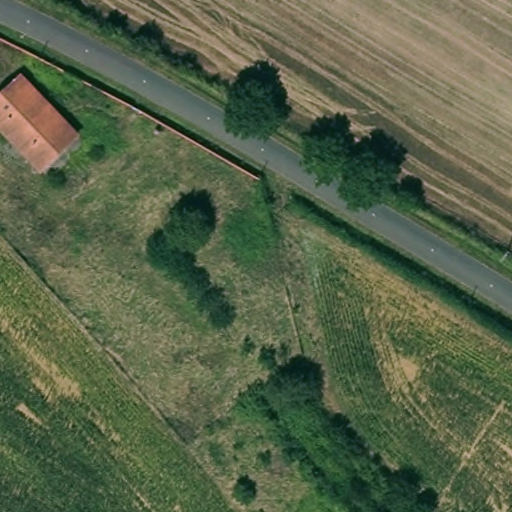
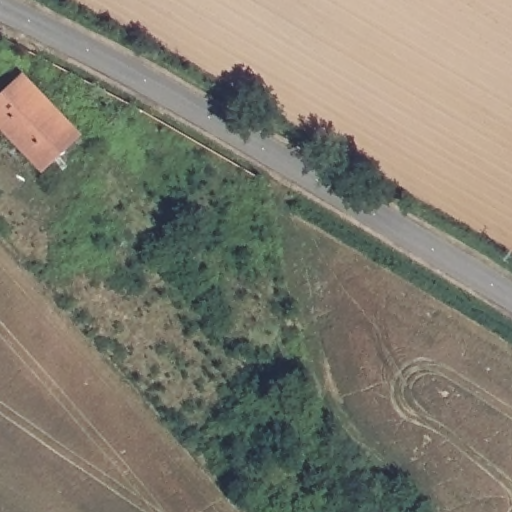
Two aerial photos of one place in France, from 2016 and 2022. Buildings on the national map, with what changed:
unchanged [(75,135),(37,168),(0,127),(0,94),(20,75),(75,135)]

